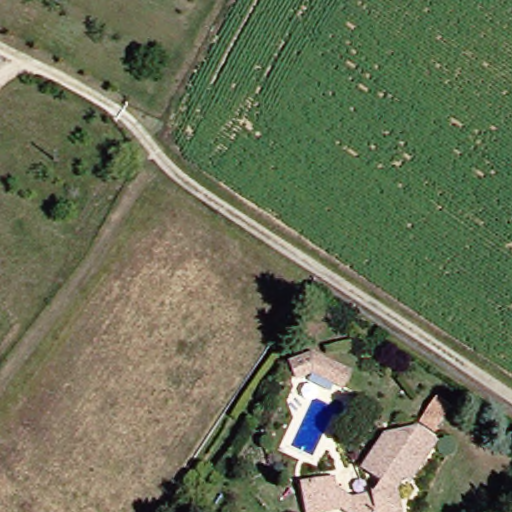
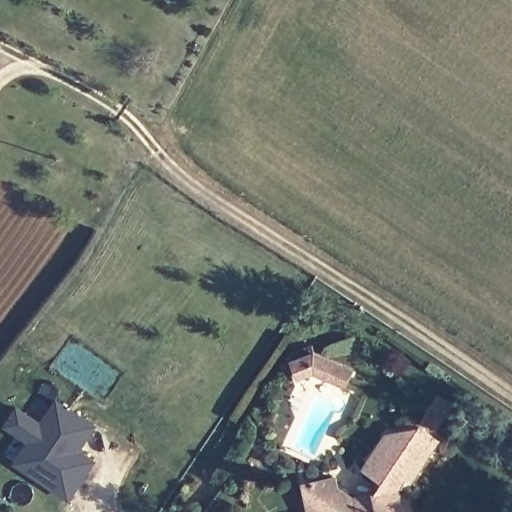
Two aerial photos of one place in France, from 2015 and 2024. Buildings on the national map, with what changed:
unchanged [(315,353),(354,371),(346,388),(313,375),(299,381),(291,364),(315,353)]
new [(96,427),(82,450),(97,460),(68,502),(12,464),(27,442),(5,428),(19,407),(41,422),(55,401),(96,427)]
unchanged [(418,472),(409,473),(402,485),(408,512),(359,512),(359,510),(350,512),(348,508),(330,512),(312,512),(305,485),(336,478),(339,486),(358,497),(374,495),(384,480),(377,476),(373,455),(391,429),(421,423),(442,436),(418,472)]

